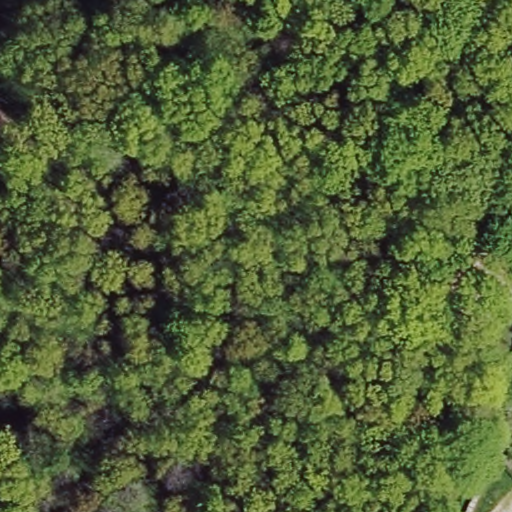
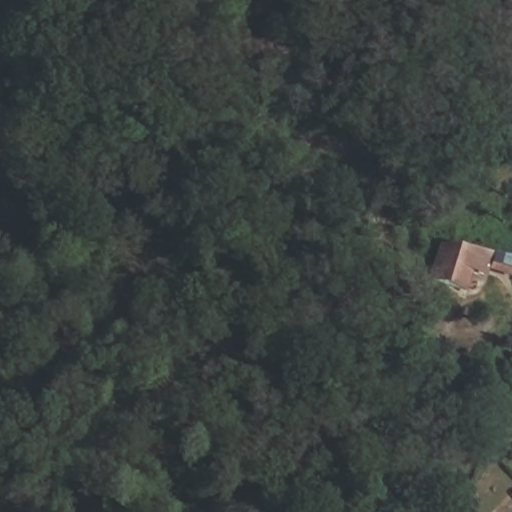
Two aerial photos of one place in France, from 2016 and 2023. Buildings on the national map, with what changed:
new [(479,246),(501,251),(495,280),(473,275),(469,295),(426,286),(440,239),(479,246)]

